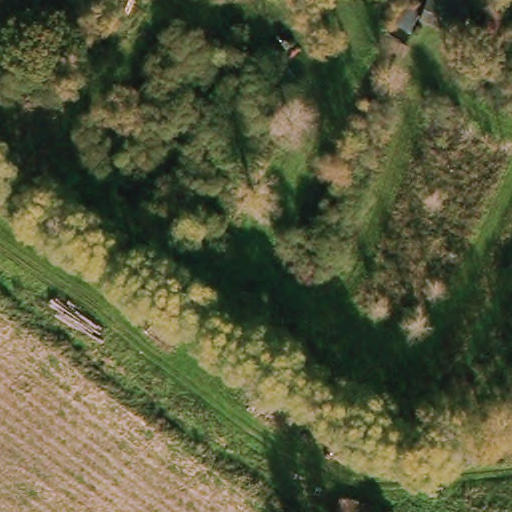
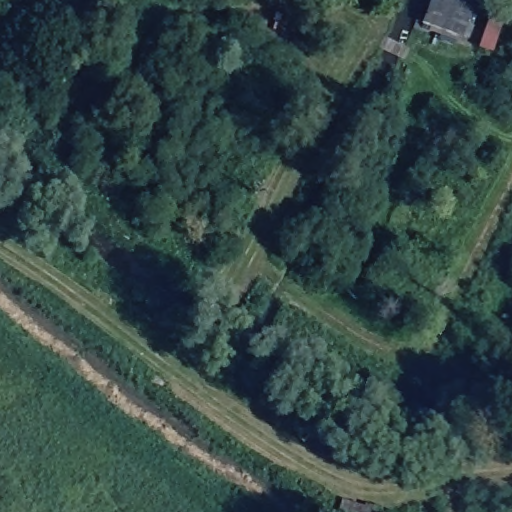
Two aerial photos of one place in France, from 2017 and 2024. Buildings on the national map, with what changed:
unchanged [(421,36),(422,13),(436,12),(436,0),(448,0),(448,1),(463,2),(462,7),(468,7),(467,23),(463,23),(463,32),(458,32),(458,37),(421,36)]
unchanged [(382,512),(331,512),(333,501),(382,512)]

